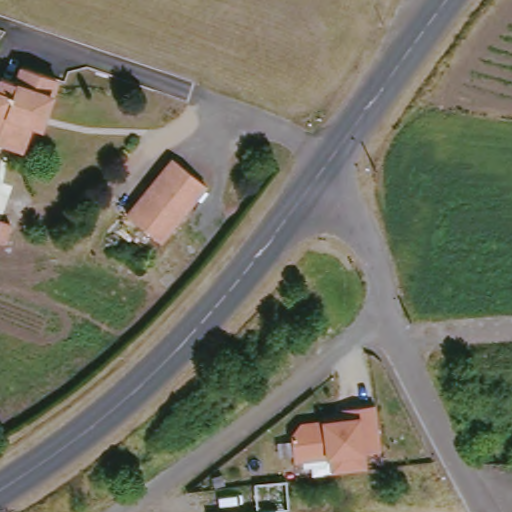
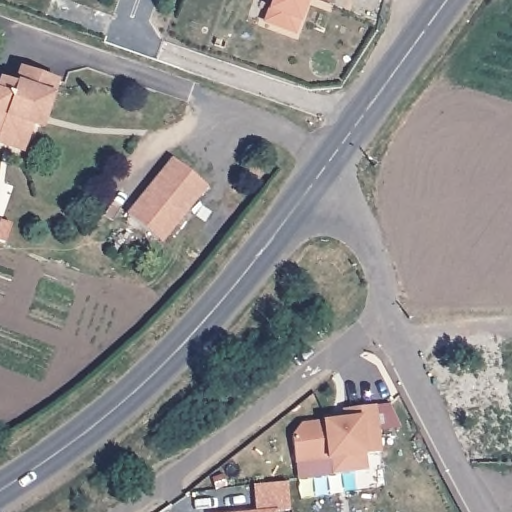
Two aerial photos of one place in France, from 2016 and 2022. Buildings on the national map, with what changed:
new [(296,34),(265,23),(268,10),(271,0),(308,0),(302,19),(296,34)]
unchanged [(0,81),(10,84),(12,77),(14,67),(20,69),(52,76),(43,111),(40,125),(30,123),(25,141),(22,150),(12,146),(0,144),(0,81)]
unchanged [(162,244),(127,219),(170,160),(206,186),(162,244)]
new [(0,238),(0,220),(6,222),(0,238)]
unchanged [(313,322),(317,328),(307,336),(303,330),(313,322)]
new [(394,403),(397,424),(366,427),(363,407),(394,403)]
unchanged [(353,456),(355,473),(322,477),(320,461),(284,465),(281,442),(280,440),(290,426),(312,423),(312,418),(332,415),(332,411),(364,407),(367,433),(367,438),(370,454),(353,456)]
new [(275,512),(255,512),(253,486),(287,483),(290,510),(275,511),(275,512)]

